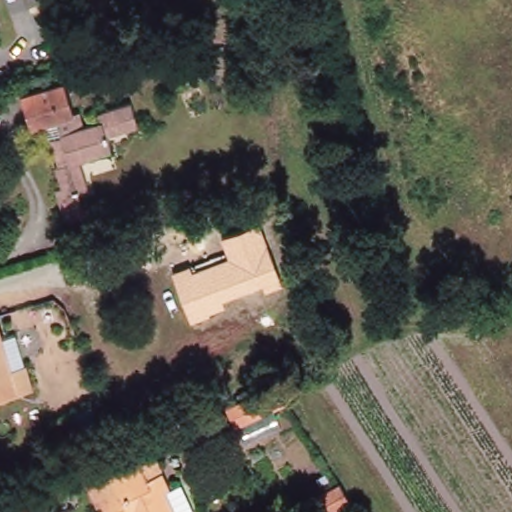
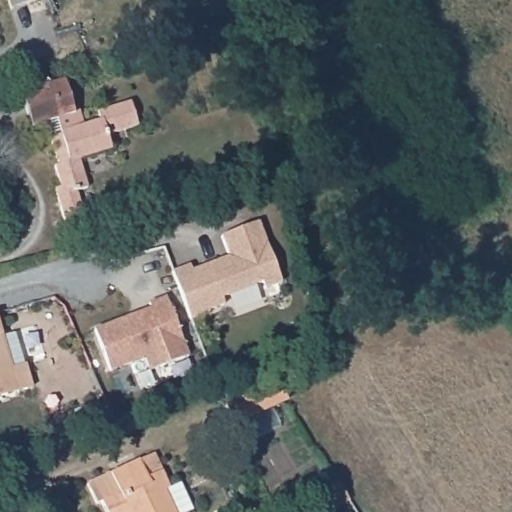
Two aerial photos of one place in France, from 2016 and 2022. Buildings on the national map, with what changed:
unchanged [(7,15),(2,0),(40,0),(41,2),(7,15)]
unchanged [(62,222),(56,199),(54,191),(59,189),(52,168),(56,167),(49,141),(46,142),(41,125),(29,128),(19,94),(63,82),(72,114),(78,112),(82,127),(99,123),(96,114),(128,105),(135,128),(105,137),(109,152),(77,162),(85,190),(72,194),(80,217),(62,222)]
unchanged [(172,272),(191,266),(193,271),(229,257),(222,237),(261,224),(282,286),(265,292),(262,285),(222,300),(224,307),(209,312),(210,315),(191,322),(172,272)]
new [(137,312),(139,317),(152,312),(149,302),(166,296),(189,355),(150,370),(145,356),(110,370),(94,328),(137,312)]
unchanged [(11,333),(21,365),(22,364),(29,387),(0,396),(0,336),(11,333)]
unchanged [(268,411),(237,426),(228,407),(259,392),(268,411)]
unchanged [(91,404),(98,422),(63,437),(55,420),(91,404)]
unchanged [(182,484),(195,511),(192,512),(107,512),(102,503),(97,506),(89,486),(139,462),(154,455),(162,472),(170,488),(182,484)]
unchanged [(348,501),(327,512),(320,512),(312,497),(339,483),(348,501)]

